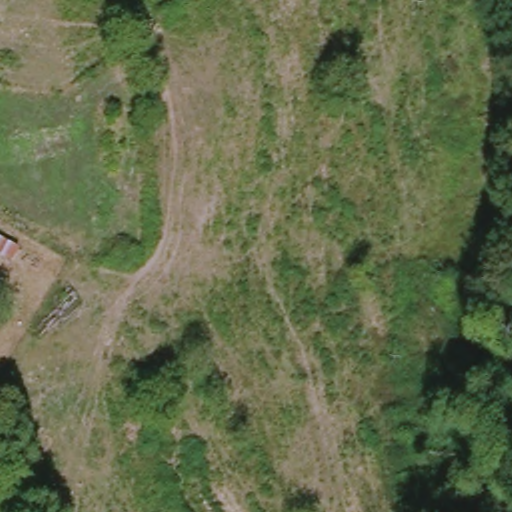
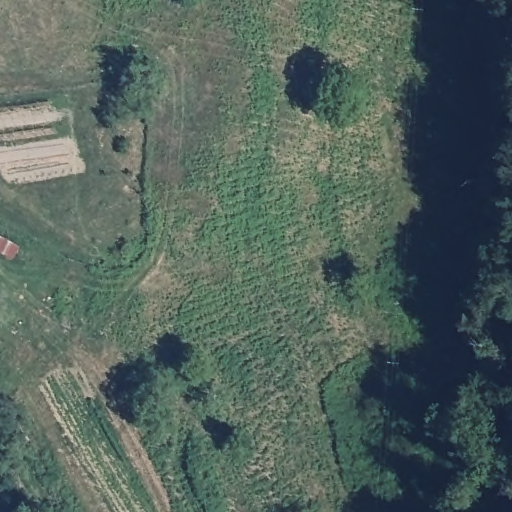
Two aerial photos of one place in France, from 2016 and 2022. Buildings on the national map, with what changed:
unchanged [(7,239),(28,250),(19,269),(0,258),(0,252),(7,239)]

